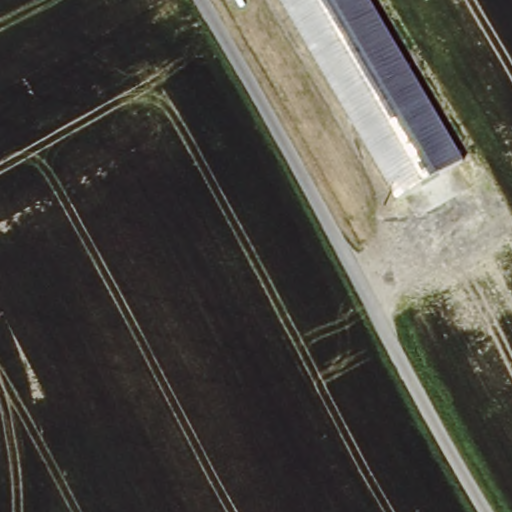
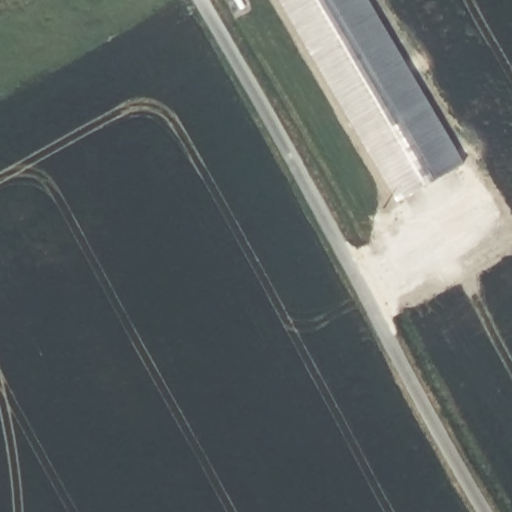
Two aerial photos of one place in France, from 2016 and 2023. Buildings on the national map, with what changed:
unchanged [(465,161),(398,202),(314,57),(280,0),(371,0),(465,161)]

